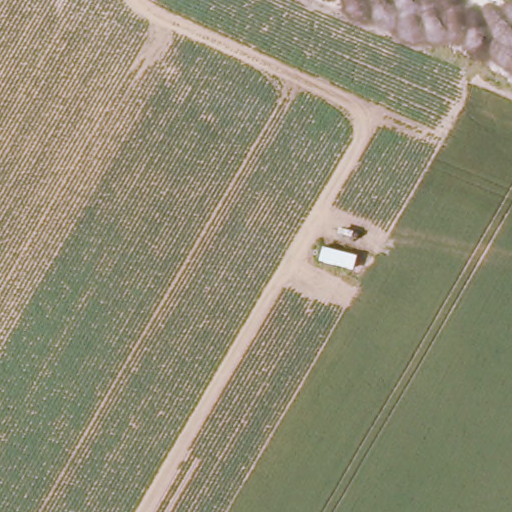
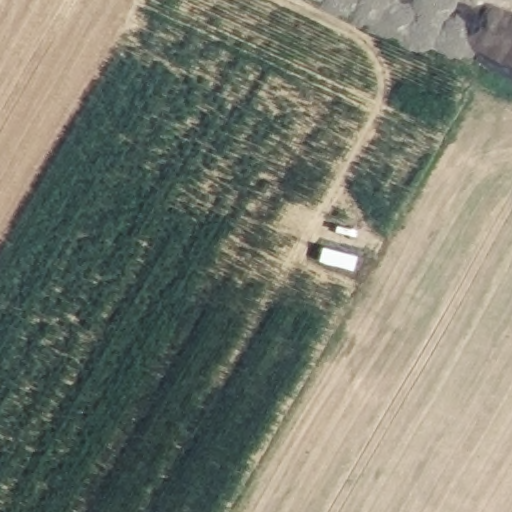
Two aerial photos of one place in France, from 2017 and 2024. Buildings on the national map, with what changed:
unchanged [(317,245),(326,245),(328,235),(353,241),(350,251),(357,254),(354,270),(314,260),(317,245)]

